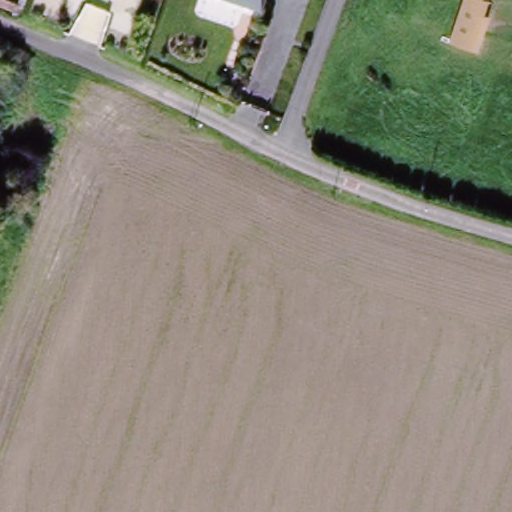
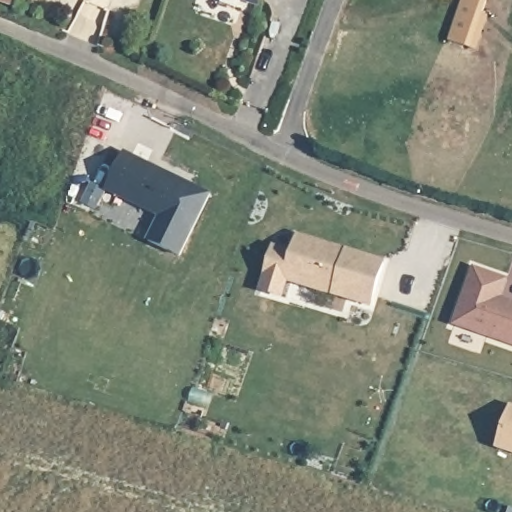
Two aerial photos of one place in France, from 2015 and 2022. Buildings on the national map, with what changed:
unchanged [(12,0),(10,4),(0,0),(12,0)]
unchanged [(250,0),(262,0),(261,4),(250,0)]
unchanged [(441,41),(459,0),(484,0),(480,16),(468,49),(456,47),(441,41)]
new [(210,196),(180,258),(148,243),(160,218),(106,192),(125,155),(210,196)]
new [(281,297),(261,292),(274,249),(293,255),(298,237),(383,262),(370,306),(286,281),(281,297)]
new [(505,279),(497,302),(505,305),(507,301),(512,302),(512,345),(452,324),(472,267),(505,279)]
new [(509,407),(512,408),(512,453),(495,447),(509,407)]

